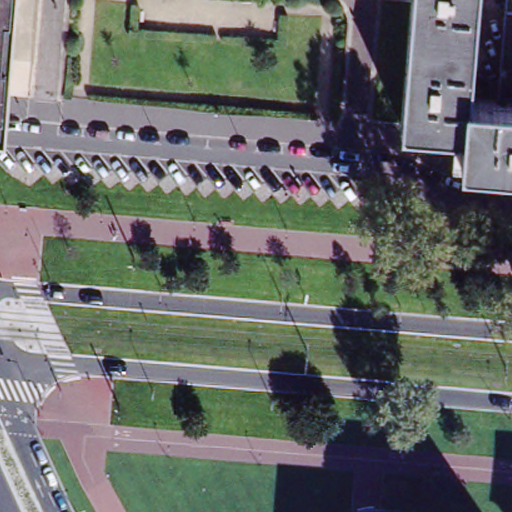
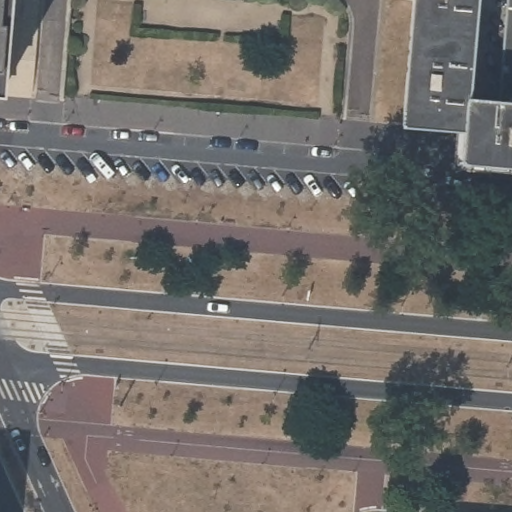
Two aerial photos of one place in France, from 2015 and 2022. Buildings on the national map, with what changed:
unchanged [(6,93),(0,92),(0,0),(15,0),(6,93)]
unchanged [(467,132),(407,127),(418,0),(483,0),(474,99),(503,101),(511,0),(512,0),(512,167),(465,164),(467,132)]

